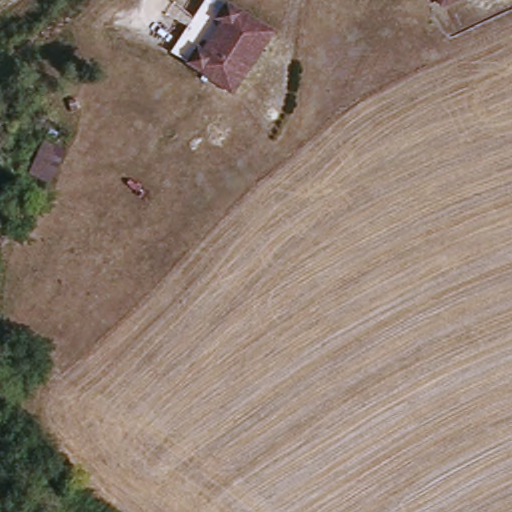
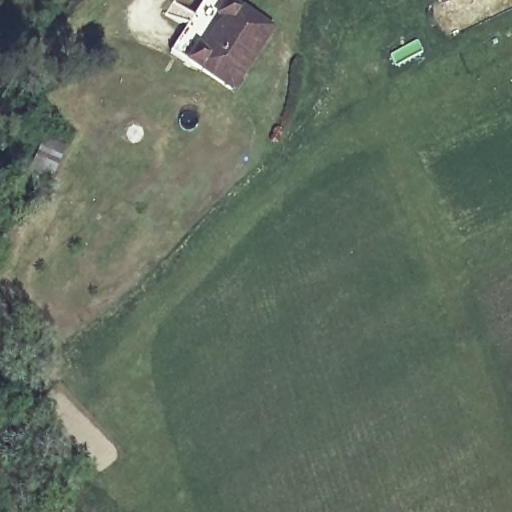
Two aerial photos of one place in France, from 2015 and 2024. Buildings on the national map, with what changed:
unchanged [(273,30),(235,89),(202,68),(191,61),(200,46),(220,16),(230,1),(271,29),(273,30)]

